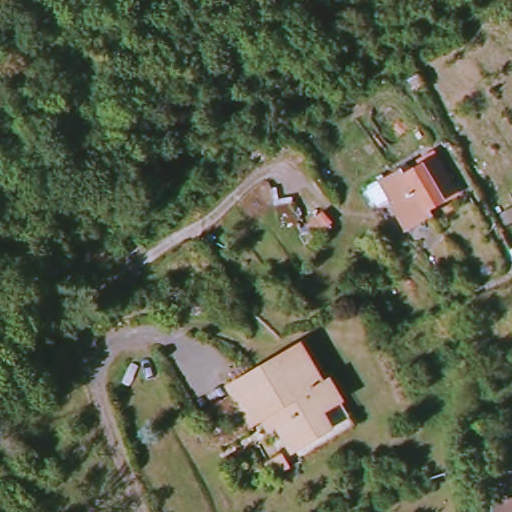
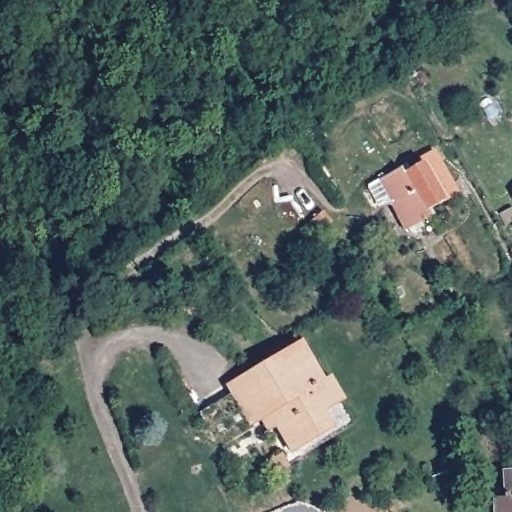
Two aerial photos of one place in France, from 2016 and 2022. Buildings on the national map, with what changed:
unchanged [(375,190),(387,185),(392,195),(403,190),(395,172),(415,163),(415,159),(429,153),(449,195),(420,209),(422,214),(393,227),(375,190)]
unchanged [(207,434),(215,429),(237,415),(230,401),(301,361),(336,420),(323,427),(332,442),(292,465),(277,441),(280,438),(274,428),(255,440),(257,444),(225,464),(207,434)]
unchanged [(509,461),(508,450),(512,450),(512,512),(504,512),(500,462),(509,461)]

